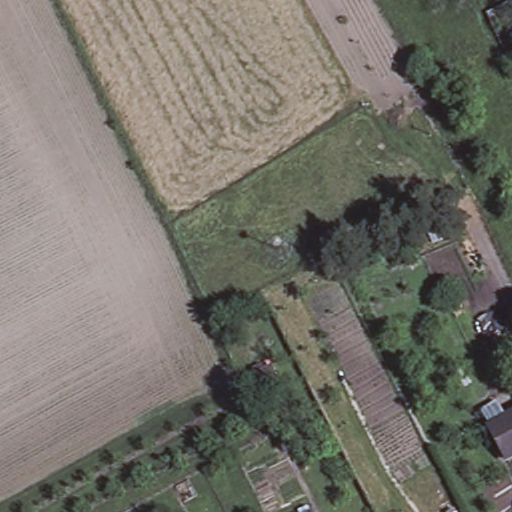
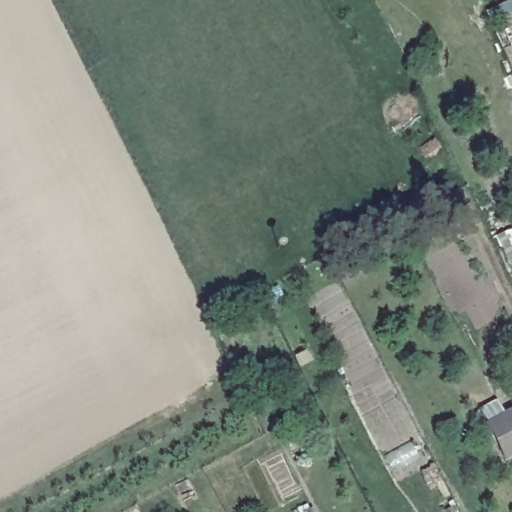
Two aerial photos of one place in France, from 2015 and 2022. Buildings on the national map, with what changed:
unchanged [(270,358),(275,371),(254,380),(249,368),(270,358)]
unchanged [(490,419),(497,416),(512,408),(512,450),(507,453),(490,419)]

